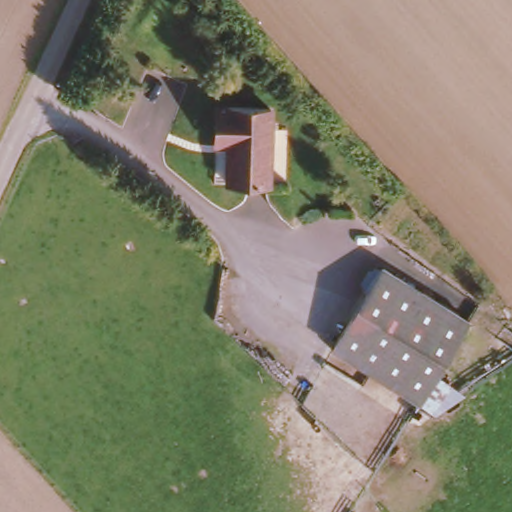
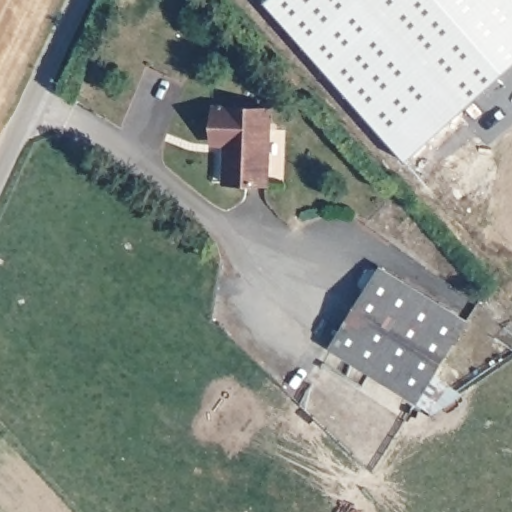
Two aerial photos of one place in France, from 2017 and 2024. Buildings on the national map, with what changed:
new [(467,110),(408,160),(267,1),(269,0),(370,0),(467,110)]
new [(512,70),(467,110),(370,0),(512,0),(512,70)]
unchanged [(276,105),(273,182),(231,181),(233,144),(220,143),(220,104),(276,105)]
unchanged [(383,262),(468,319),(417,401),(330,345),(383,262)]

